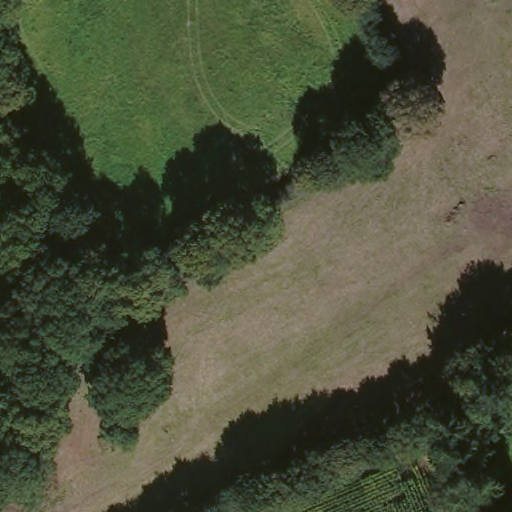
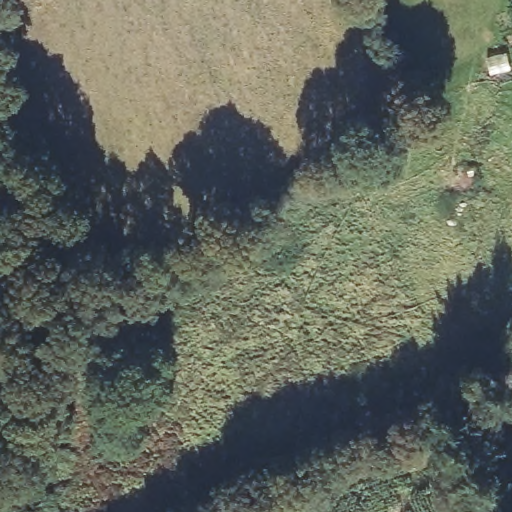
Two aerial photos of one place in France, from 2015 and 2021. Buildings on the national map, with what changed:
unchanged [(503,385),(512,380),(512,400),(503,385)]

